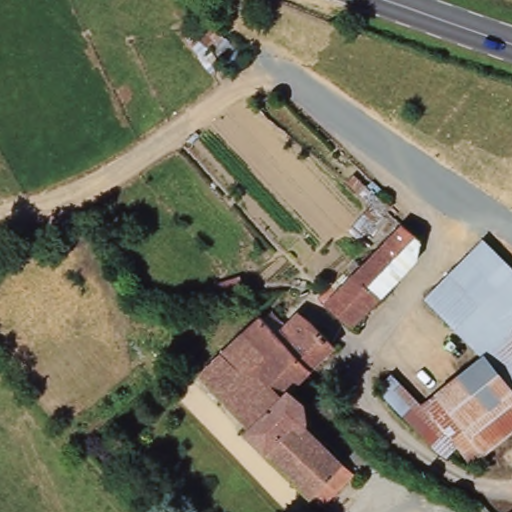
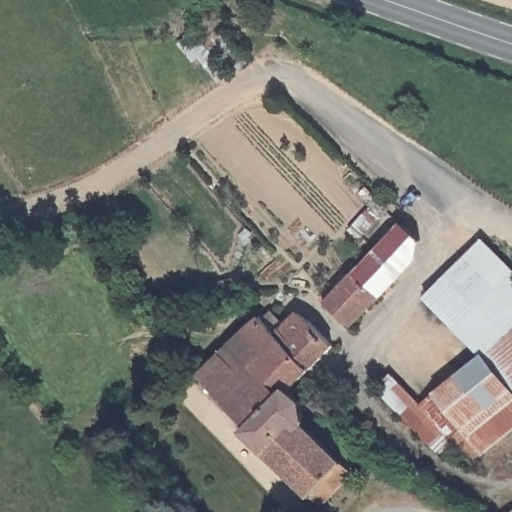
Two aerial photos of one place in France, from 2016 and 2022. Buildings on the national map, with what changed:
unchanged [(246,48),(212,75),(181,37),(203,22),(246,48)]
unchanged [(428,252),(418,262),(350,332),(340,322),(322,305),(400,226),(417,242),(428,252)]
unchanged [(512,268),(512,320),(507,325),(445,271),(476,236),(512,268)]
unchanged [(442,268),(445,271),(507,325),(477,346),(419,295),(442,268)]
unchanged [(282,335),(300,320),(317,332),(334,349),(289,397),(255,363),(261,355),(243,336),(264,317),(282,335)]
unchanged [(512,330),(507,325),(512,320),(512,330)]
unchanged [(512,330),(512,435),(495,452),(431,377),(477,346),(507,325),(512,330)]
unchanged [(261,355),(255,363),(289,397),(300,410),(302,420),(302,430),(349,477),(319,512),(241,436),(246,428),(196,377),(243,336),(261,355)]
unchanged [(408,393),(430,417),(469,458),(457,467),(376,391),(392,377),(408,393)]
unchanged [(408,393),(431,377),(495,452),(481,470),(469,458),(430,417),(408,393)]
unchanged [(512,512),(510,512),(512,510),(512,512)]

